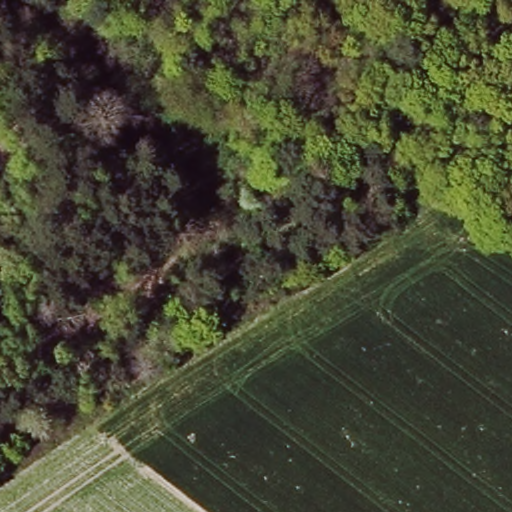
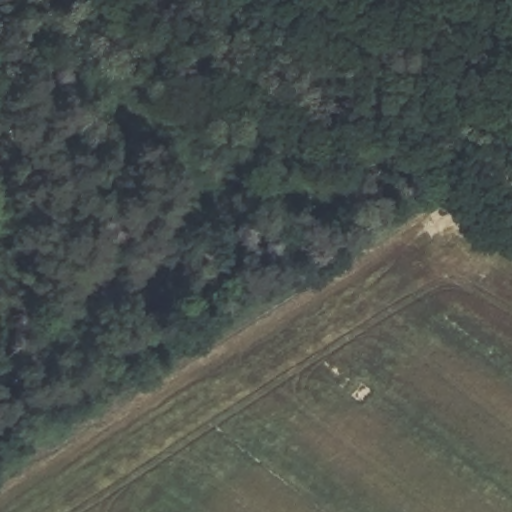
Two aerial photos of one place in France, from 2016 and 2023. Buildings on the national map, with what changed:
[]

